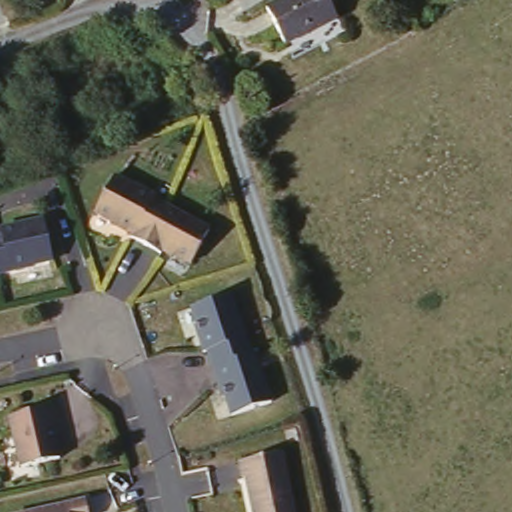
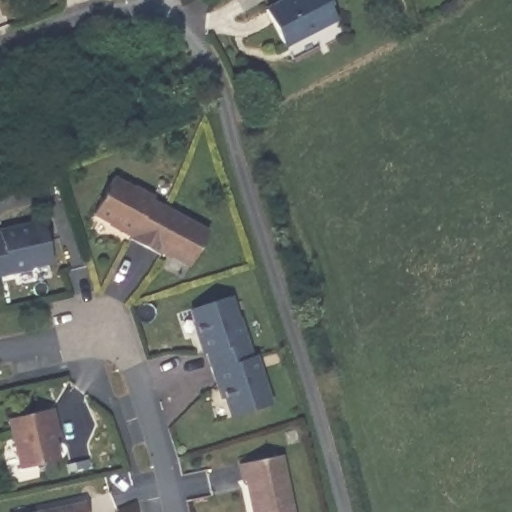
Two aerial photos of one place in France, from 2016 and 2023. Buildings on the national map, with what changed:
unchanged [(325,0),(333,18),(281,40),(263,3),(271,0),(325,0)]
unchanged [(123,171),(144,182),(144,181),(164,191),(162,195),(219,226),(200,259),(172,244),(169,249),(140,232),(142,228),(102,207),(123,171)]
unchanged [(51,217),(59,258),(37,263),(37,265),(0,271),(0,227),(51,217)]
unchanged [(236,289),(242,311),(245,310),(258,349),(262,348),(277,397),(238,409),(227,379),(223,381),(212,346),(209,346),(203,329),(205,328),(196,302),(236,289)]
unchanged [(17,415),(61,405),(65,422),(60,423),(67,457),(29,465),(17,415)]
unchanged [(251,472),(248,472),(244,456),(286,448),(299,512),(259,512),(251,472)]
unchanged [(94,498),(96,512),(31,512),(94,498)]

